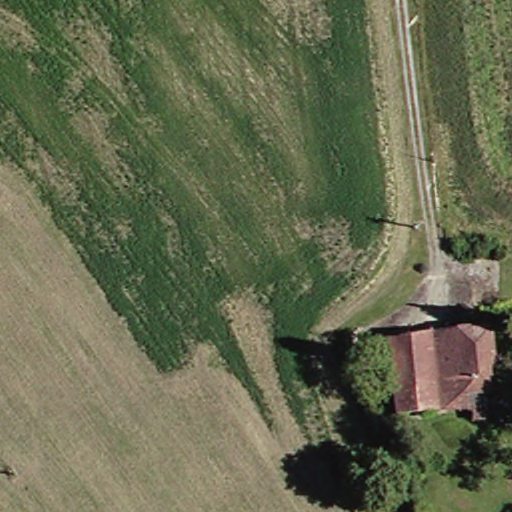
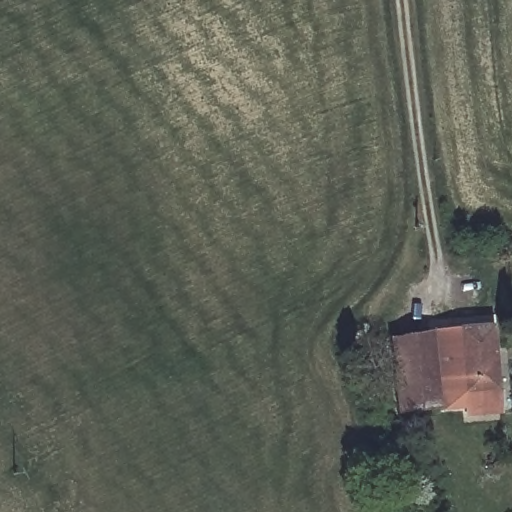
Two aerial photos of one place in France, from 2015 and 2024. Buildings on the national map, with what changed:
unchanged [(492,313),(500,406),(400,414),(395,341),(492,313)]

